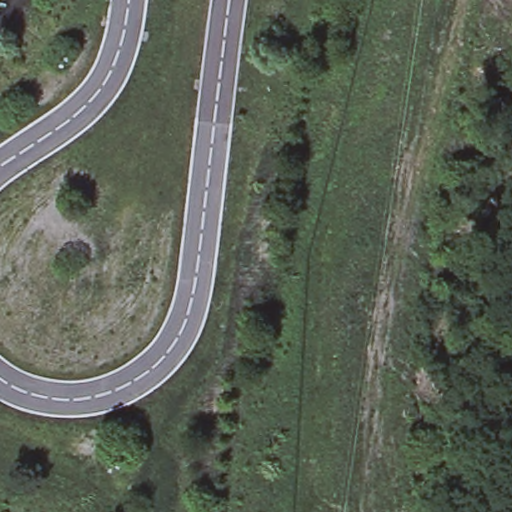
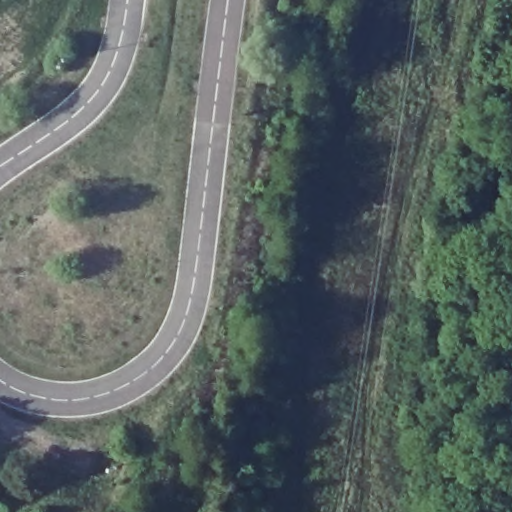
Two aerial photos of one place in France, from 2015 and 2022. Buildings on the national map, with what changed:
[]

